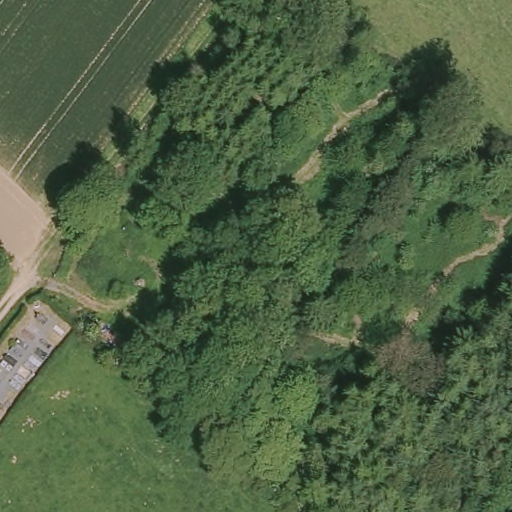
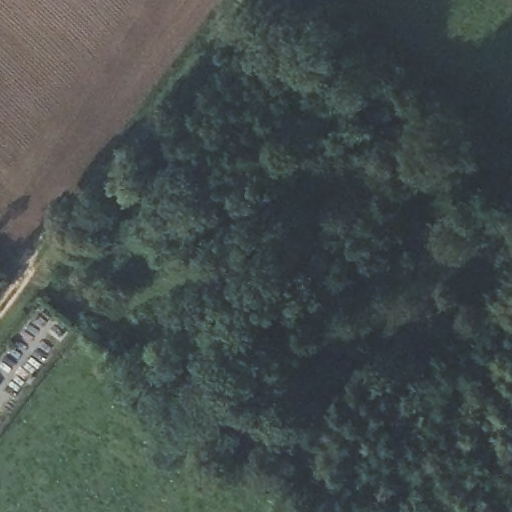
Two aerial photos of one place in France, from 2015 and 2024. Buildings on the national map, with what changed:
[]

